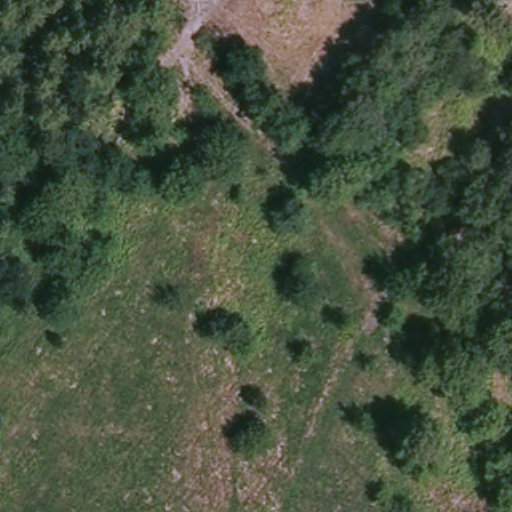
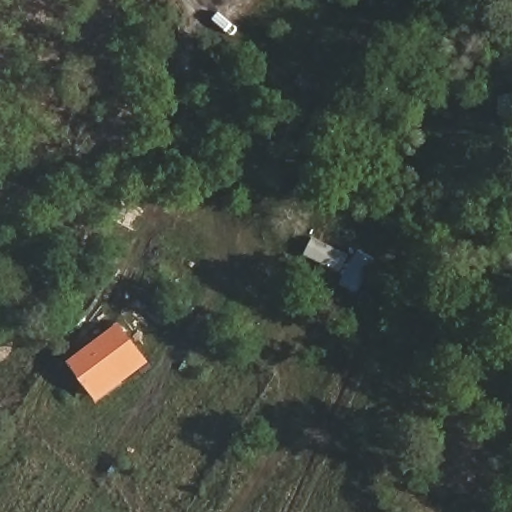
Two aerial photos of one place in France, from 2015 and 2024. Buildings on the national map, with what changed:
new [(68,361),(119,322),(150,361),(97,401),(68,361)]

